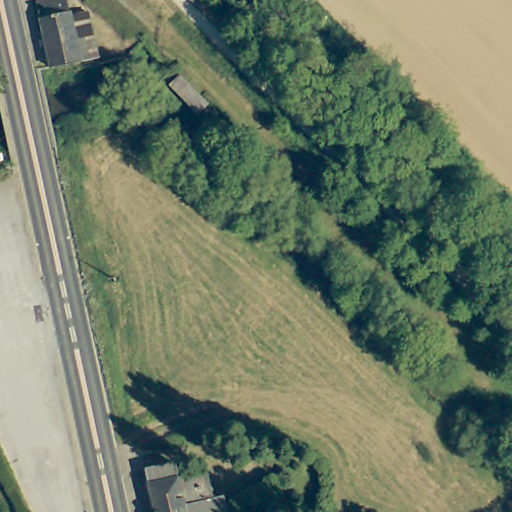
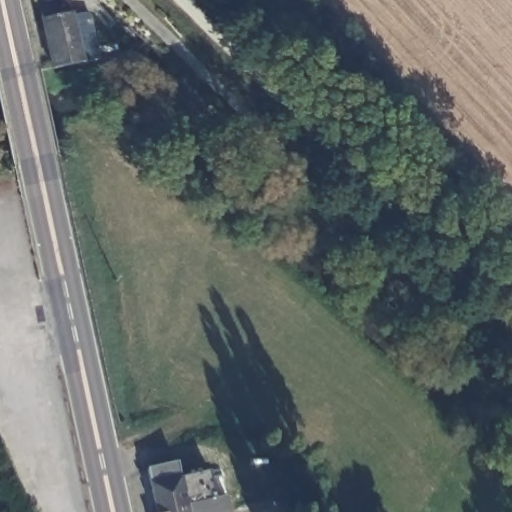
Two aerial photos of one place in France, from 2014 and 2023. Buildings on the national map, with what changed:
unchanged [(100,56),(54,74),(51,64),(50,55),(39,0),(69,0),(71,14),(91,11),(100,56)]
unchanged [(185,80),(210,105),(206,109),(198,117),(173,92),(181,84),(185,80)]
unchanged [(223,495),(224,495),(224,496),(227,512),(159,512),(154,481),(151,464),(180,459),(183,474),(198,471),(208,469),(214,497),(223,495)]

